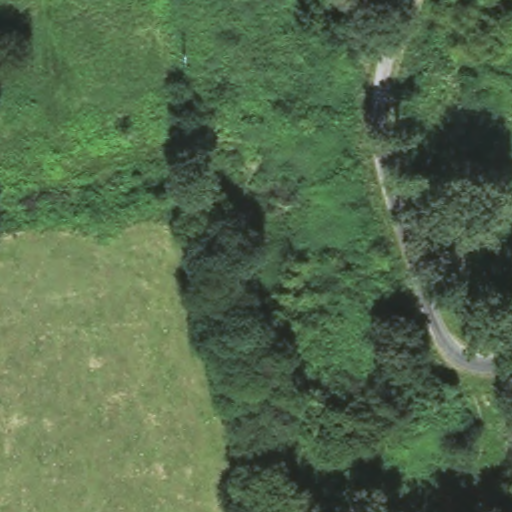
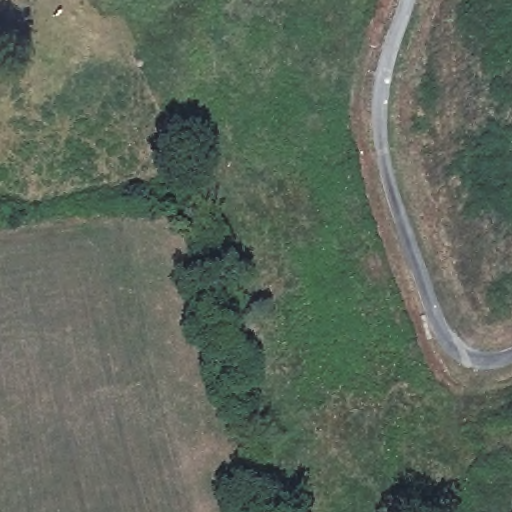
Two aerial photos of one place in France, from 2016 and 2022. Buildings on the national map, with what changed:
[]

